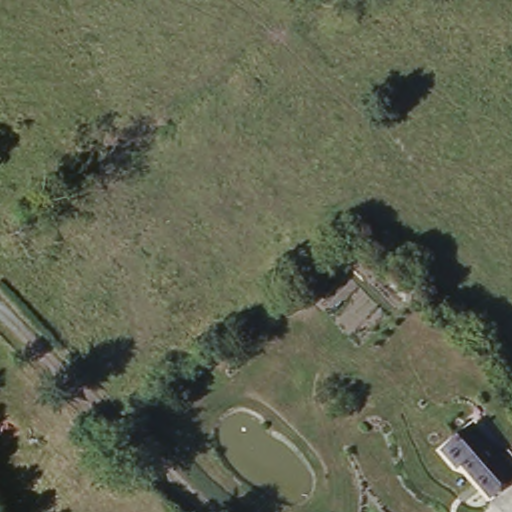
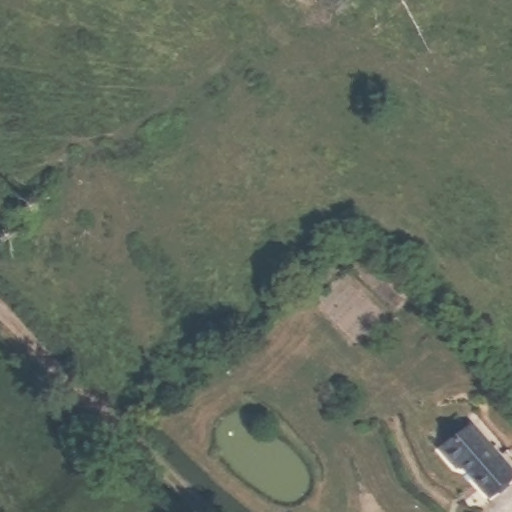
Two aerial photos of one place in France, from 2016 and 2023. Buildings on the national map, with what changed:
unchanged [(479,426),(512,467),(512,479),(494,493),(470,462),(465,467),(451,448),(479,426)]

